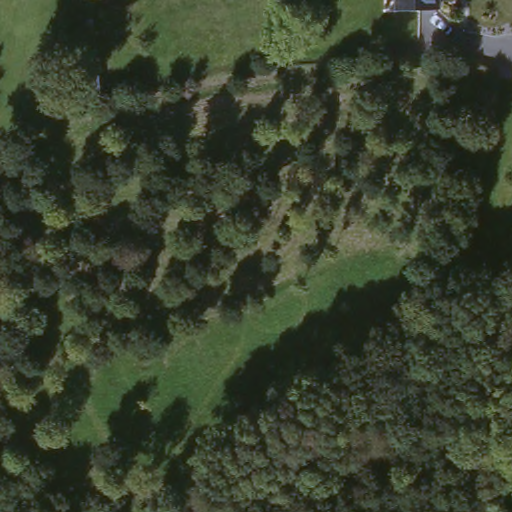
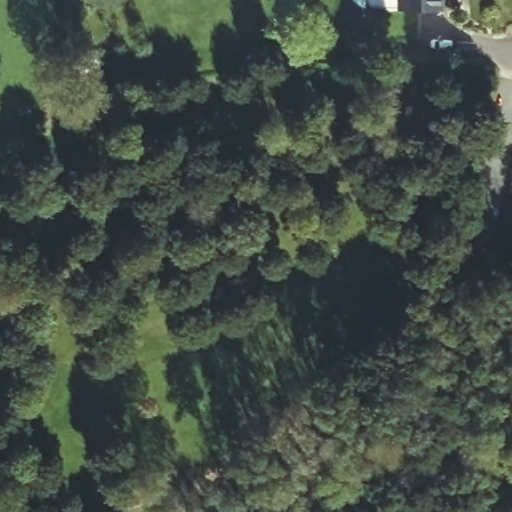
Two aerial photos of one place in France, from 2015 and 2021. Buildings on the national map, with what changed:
unchanged [(401,12),(402,0),(443,0),(442,15),(401,12)]

